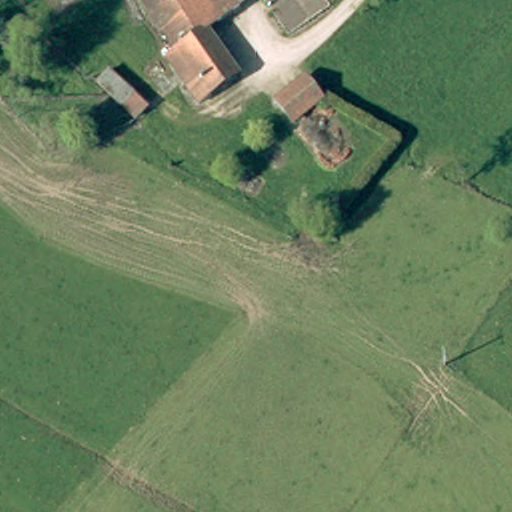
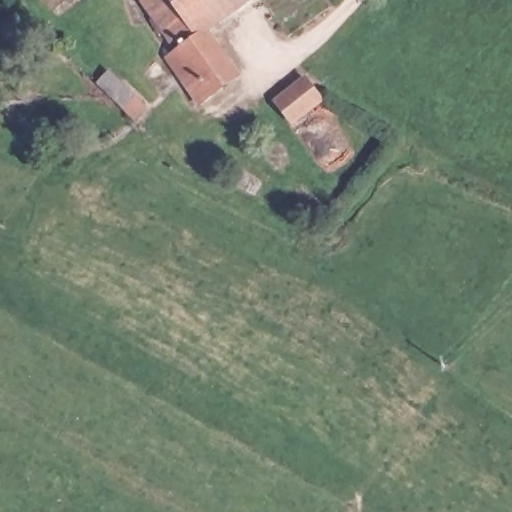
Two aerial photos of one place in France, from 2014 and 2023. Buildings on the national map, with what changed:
unchanged [(197,96),(168,54),(172,51),(152,20),(175,5),(171,0),(250,0),(195,36),(222,80),(197,96)]
unchanged [(290,128),(275,106),(305,84),(320,105),(290,128)]

